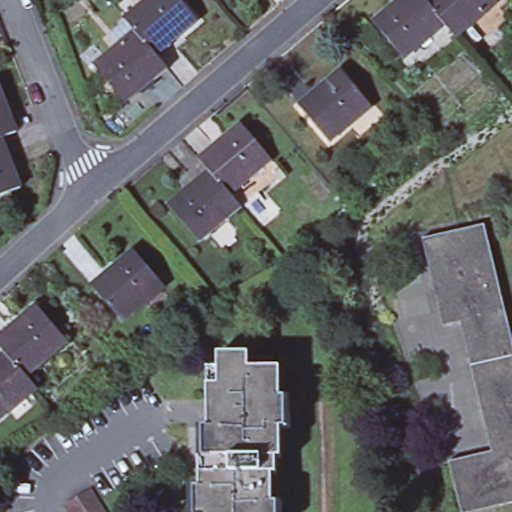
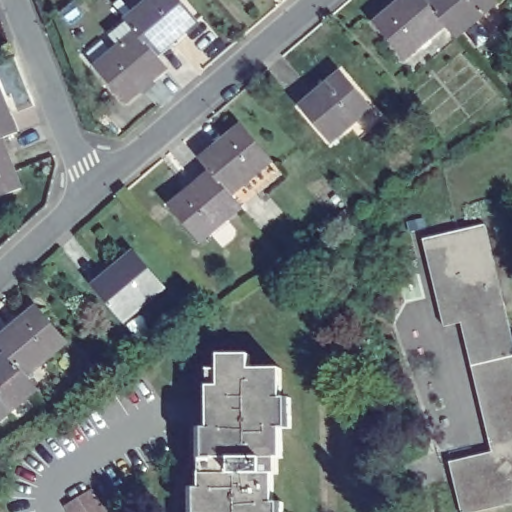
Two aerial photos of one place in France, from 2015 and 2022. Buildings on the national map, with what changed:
unchanged [(146,0),(182,0),(198,19),(157,54),(137,30),(126,17),(146,0)]
unchanged [(246,3),(243,0),(250,0),(246,3)]
unchanged [(431,2),(452,26),(411,61),(381,26),(411,0),(429,0),(431,2)]
unchanged [(502,2),(504,4),(462,39),(452,26),(431,2),(433,0),(505,0),(502,2)]
unchanged [(126,100),(96,65),(137,30),(157,54),(168,65),(126,100)]
unchanged [(373,110),(334,145),(302,109),(341,75),(373,110)]
unchanged [(3,140),(0,141),(0,92),(17,135),(3,140)]
unchanged [(181,209),(222,174),(212,162),(249,130),(279,165),(289,177),(253,209),(212,245),(181,209)]
unchanged [(24,192),(0,201),(0,141),(3,140),(24,192)]
unchanged [(512,325),(512,504),(480,512),(464,512),(451,462),(494,451),(461,323),(447,326),(424,240),(487,225),(512,325)]
unchanged [(166,290),(125,325),(95,288),(135,255),(166,290)]
unchanged [(0,344),(0,335),(36,303),(68,338),(26,374),(8,352),(0,344)]
unchanged [(0,359),(8,352),(26,374),(38,387),(0,419),(0,359)]
unchanged [(193,487),(203,487),(202,458),(202,427),(211,427),(211,387),(211,370),(221,370),(221,355),(253,355),(253,370),(284,370),(284,398),(293,398),(293,415),(294,430),(284,430),(285,458),(280,458),(280,473),(276,473),(276,502),(284,502),(284,512),(193,512),(193,502),(193,487)]
unchanged [(70,512),(67,506),(93,490),(107,512),(70,512)]

